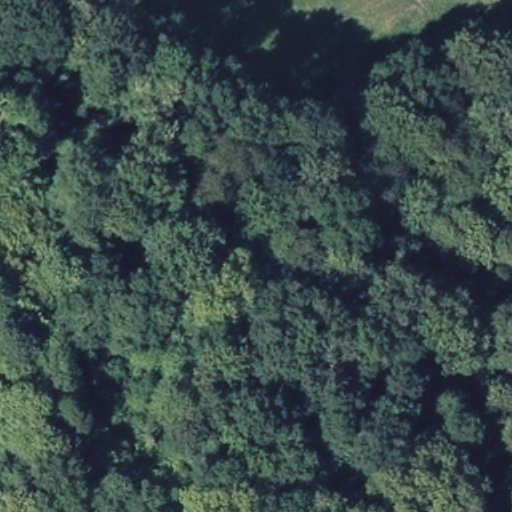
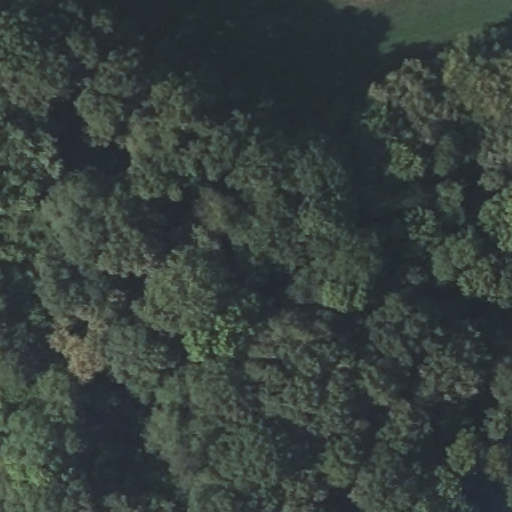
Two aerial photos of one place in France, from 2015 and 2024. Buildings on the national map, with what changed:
[]

